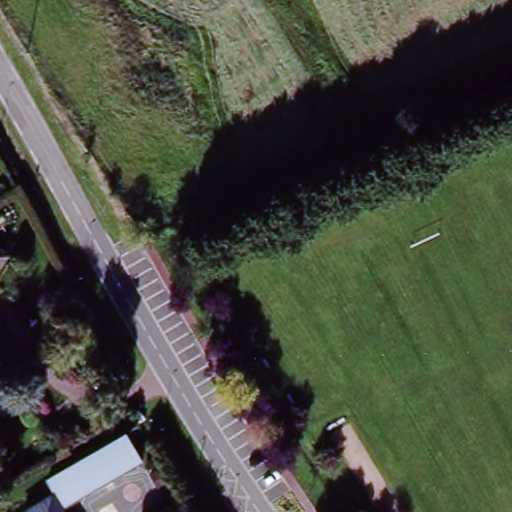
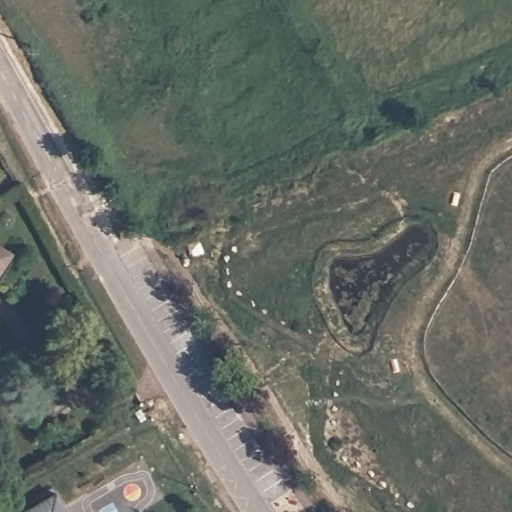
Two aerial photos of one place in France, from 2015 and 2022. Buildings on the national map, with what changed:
unchanged [(0,245),(12,252),(0,268),(0,245)]
demolished [(43,478),(120,432),(137,458),(59,507),(51,492),(43,478)]
unchanged [(59,507),(62,512),(20,512),(51,492),(59,507)]

